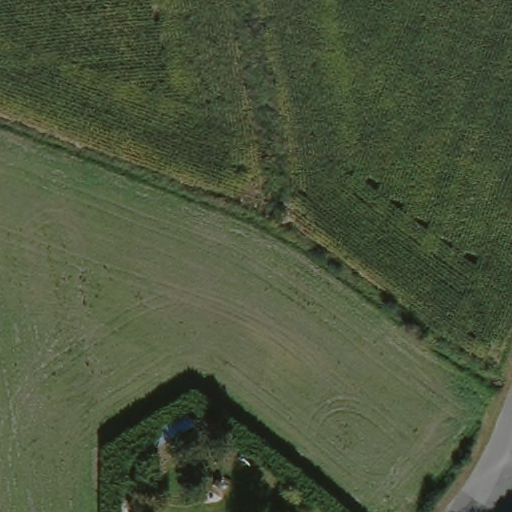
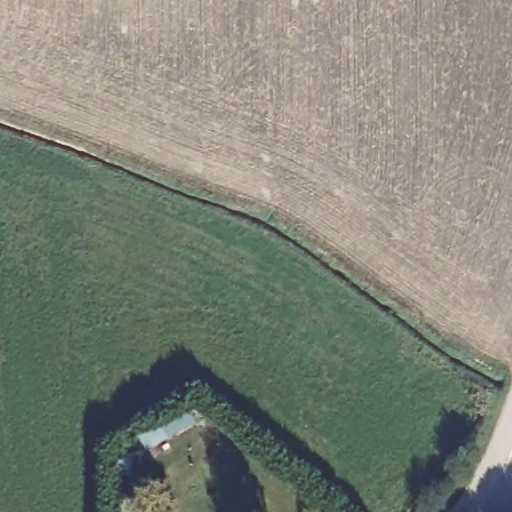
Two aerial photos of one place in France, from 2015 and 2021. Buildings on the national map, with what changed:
unchanged [(166,435),(146,447),(138,435),(155,422),(166,435)]

